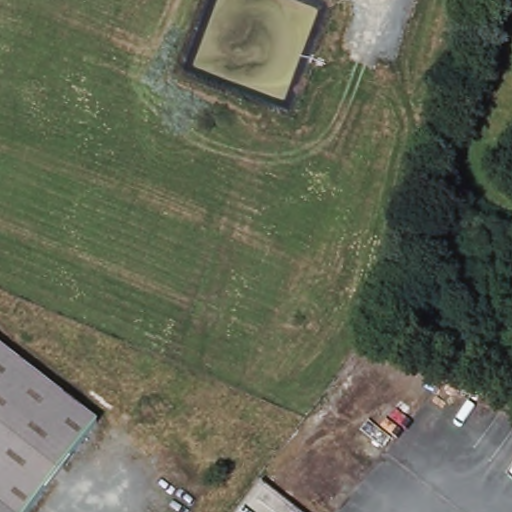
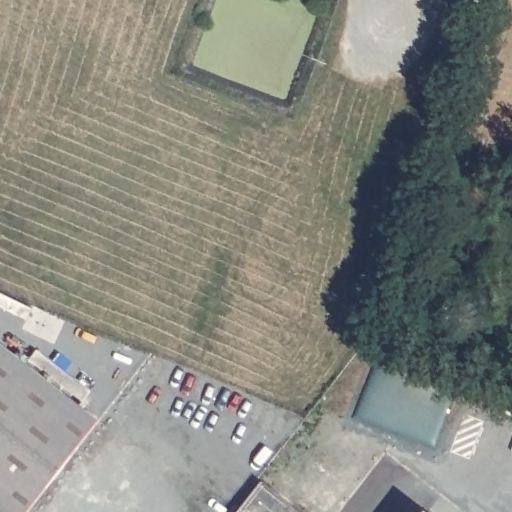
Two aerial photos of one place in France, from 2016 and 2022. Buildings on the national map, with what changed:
unchanged [(96,426),(26,512),(5,512),(0,507),(0,345),(96,426)]
unchanged [(292,512),(238,512),(258,485),(292,512)]
unchanged [(5,512),(0,512),(0,507),(5,512)]

